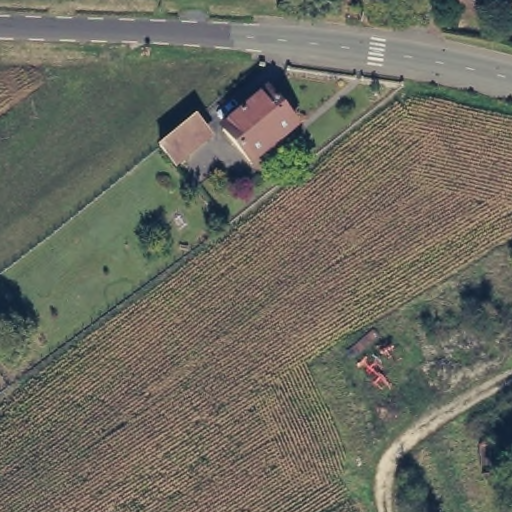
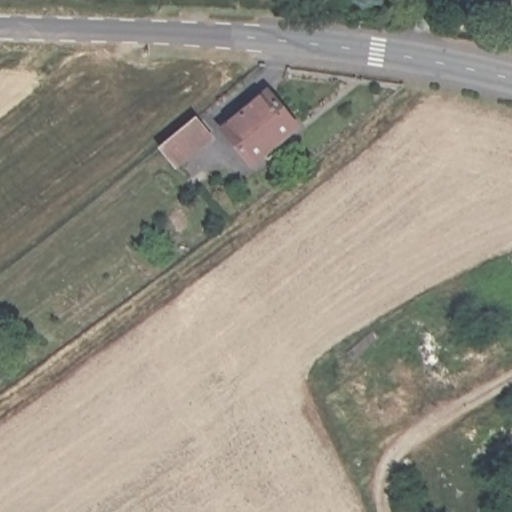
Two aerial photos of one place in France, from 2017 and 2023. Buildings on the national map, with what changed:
unchanged [(272,90),(302,128),(259,163),(229,125),(272,90)]
unchanged [(210,143),(177,170),(165,155),(198,127),(210,143)]

